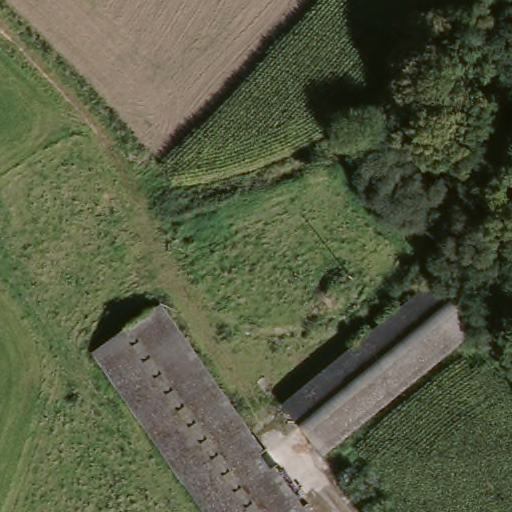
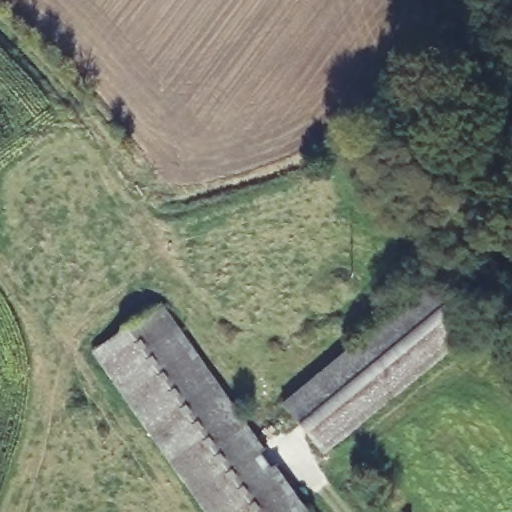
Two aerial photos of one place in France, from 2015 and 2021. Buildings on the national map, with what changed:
unchanged [(436,284),(475,330),(319,458),(282,409),(436,284)]
unchanged [(299,512),(197,512),(91,359),(159,311),(299,512)]
unchanged [(286,436),(277,424),(286,418),(294,430),(286,436)]

